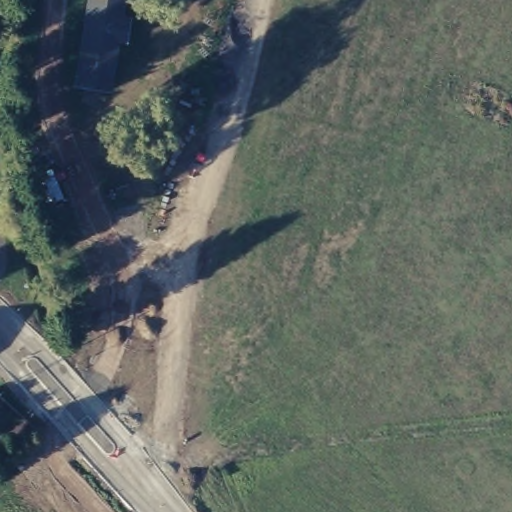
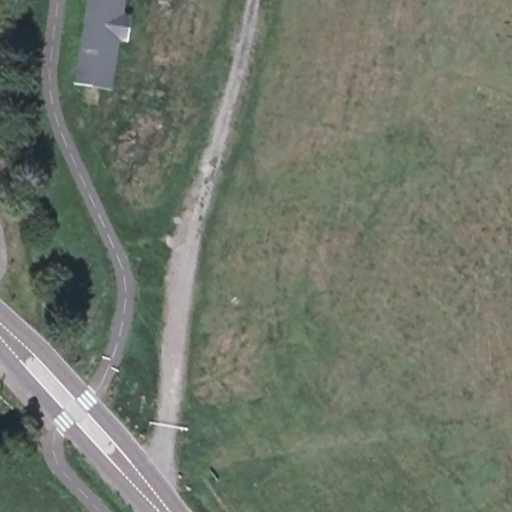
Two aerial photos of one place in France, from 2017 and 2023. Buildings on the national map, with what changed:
unchanged [(124,36),(117,35),(110,84),(72,79),(83,0),(121,0),(120,9),(127,10),(124,36)]

